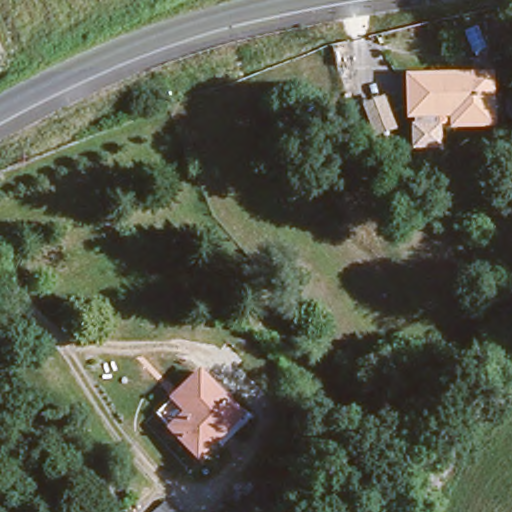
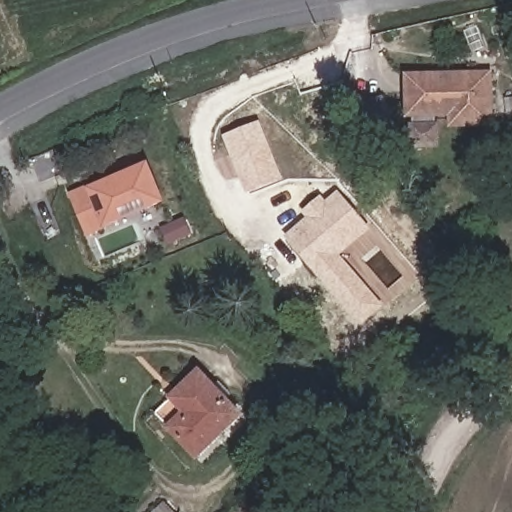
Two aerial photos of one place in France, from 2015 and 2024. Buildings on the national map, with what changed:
unchanged [(405,69),(491,68),(493,125),(447,127),(447,110),(406,109),(405,69)]
new [(504,94),(512,94),(512,115),(506,107),(504,94)]
new [(260,120),(283,179),(247,194),(223,136),(260,120)]
new [(68,193),(149,164),(164,199),(159,201),(160,206),(86,237),(68,193)]
new [(307,217),(302,212),(321,195),(326,200),(337,190),(372,229),(341,255),(385,307),(361,326),(286,237),(307,217)]
unchanged [(242,416),(198,457),(157,417),(202,378),(242,416)]
unchanged [(150,512),(162,500),(173,512),(150,512)]

